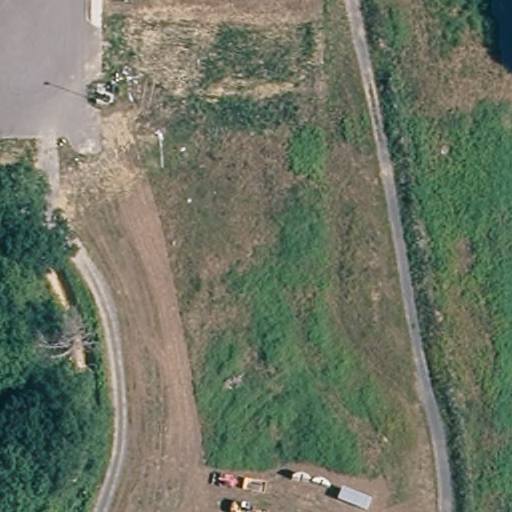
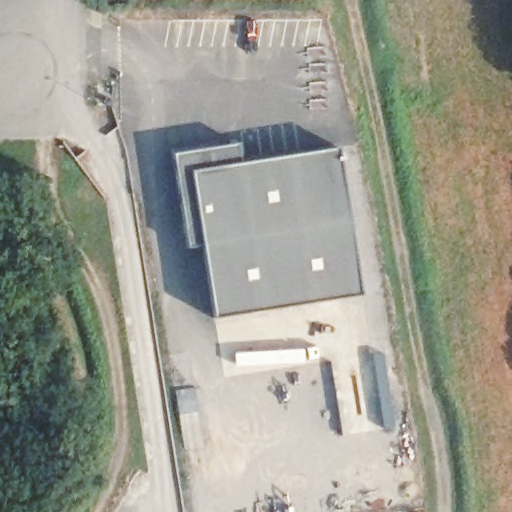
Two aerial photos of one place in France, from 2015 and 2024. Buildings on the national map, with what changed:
new [(218,319),(206,247),(191,248),(176,155),(239,145),(244,166),(340,152),(364,296),(218,319)]

